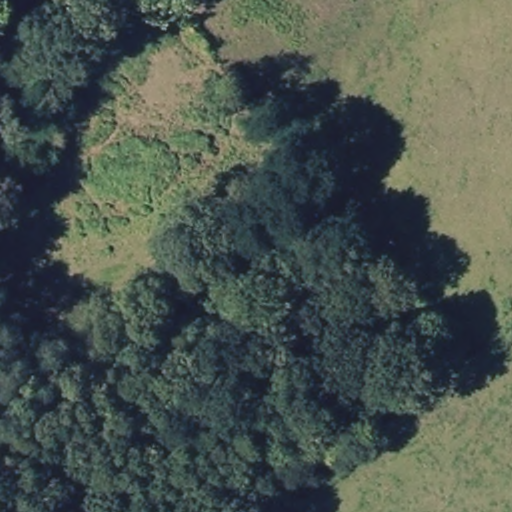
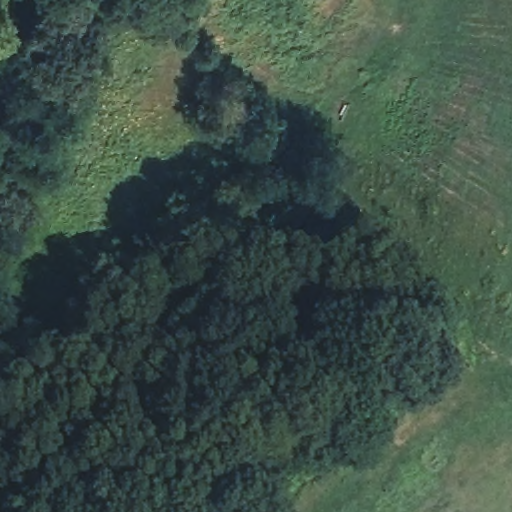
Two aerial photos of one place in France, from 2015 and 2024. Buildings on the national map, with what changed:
[]

